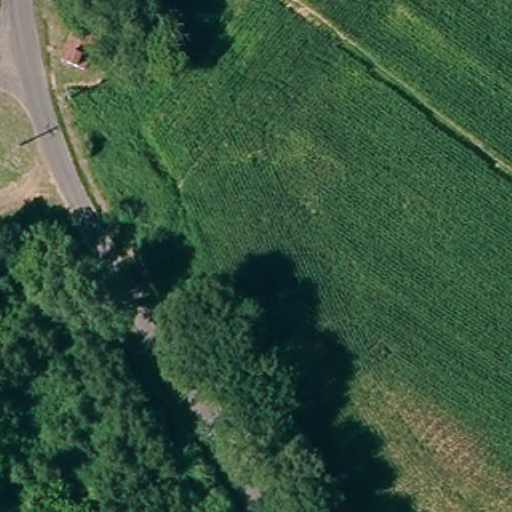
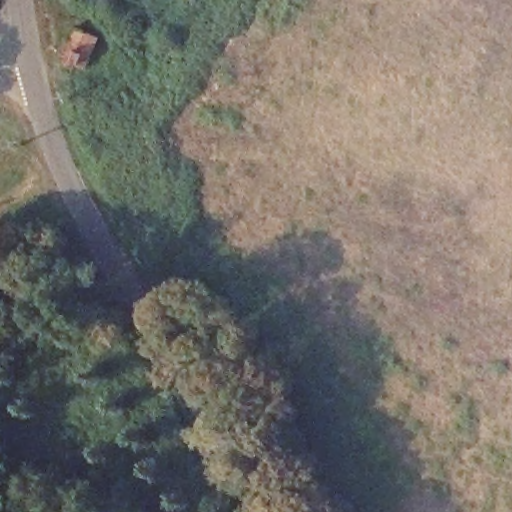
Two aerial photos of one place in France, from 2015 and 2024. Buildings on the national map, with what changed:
unchanged [(98,54),(85,92),(60,86),(74,48),(98,54)]

